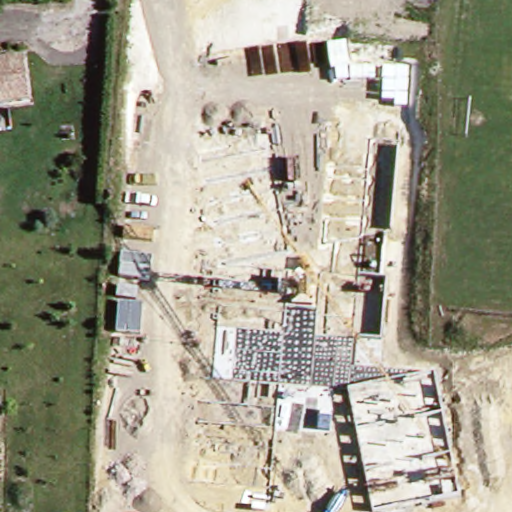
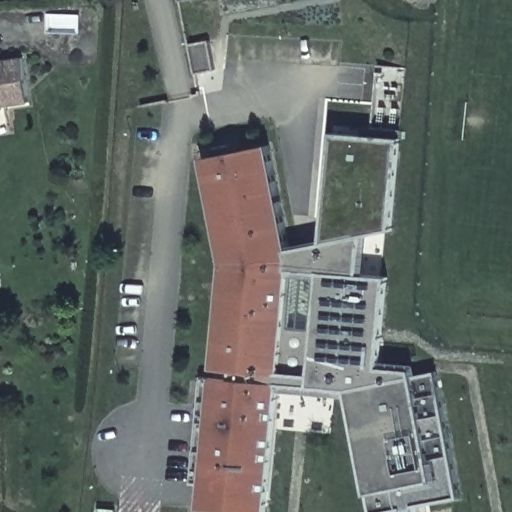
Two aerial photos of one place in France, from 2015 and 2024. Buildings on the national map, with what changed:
unchanged [(417,3),(417,0),(439,0),(439,4),(417,3)]
unchanged [(0,108),(0,62),(32,56),(40,101),(0,108)]
new [(370,496),(349,391),(310,387),(282,385),(270,512),(214,512),(200,511),(222,266),(203,160),(269,146),(289,252),(324,245),(334,135),(401,141),(393,234),(369,239),(366,277),(389,280),(381,368),(413,374),(436,372),(458,499),(414,506),(415,512),(373,512),(370,496)]

